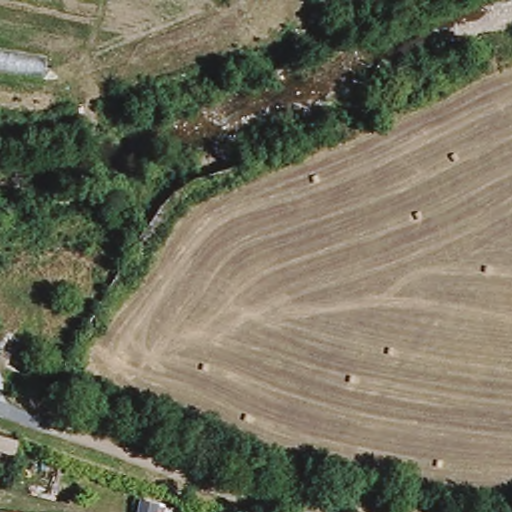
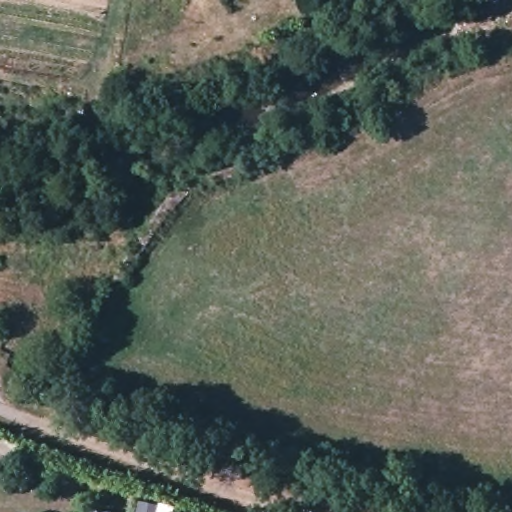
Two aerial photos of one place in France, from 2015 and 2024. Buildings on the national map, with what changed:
[]

